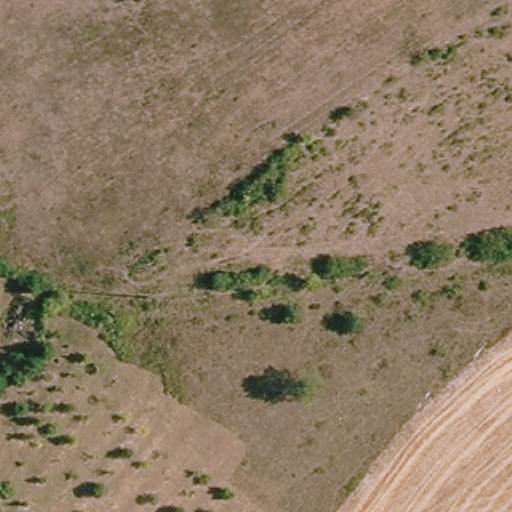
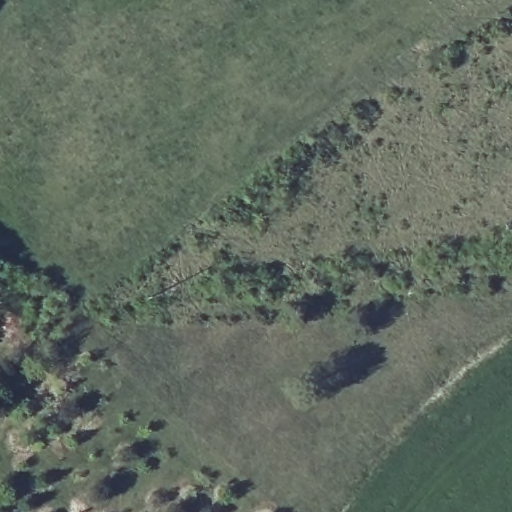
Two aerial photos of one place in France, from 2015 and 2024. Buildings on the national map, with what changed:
[]

